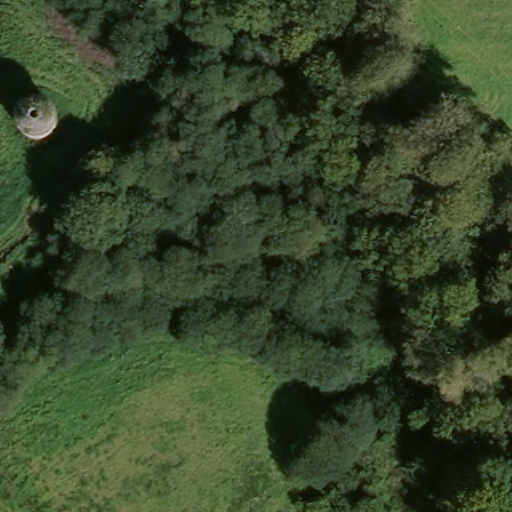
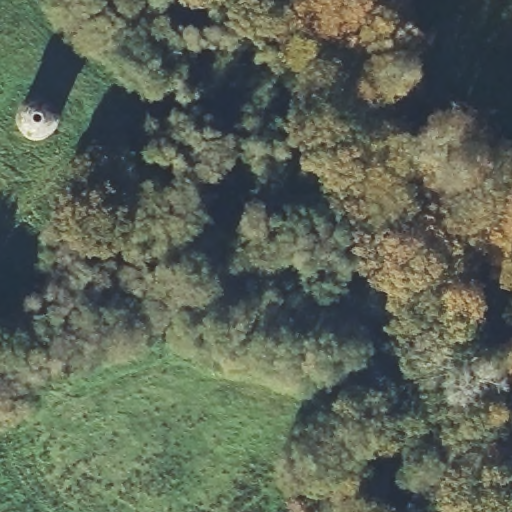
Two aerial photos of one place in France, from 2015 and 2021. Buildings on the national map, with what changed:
unchanged [(40,97),(50,102),(57,114),(55,127),(49,136),(38,140),(26,139),(17,131),(14,120),(17,110),(31,99),(40,97)]

